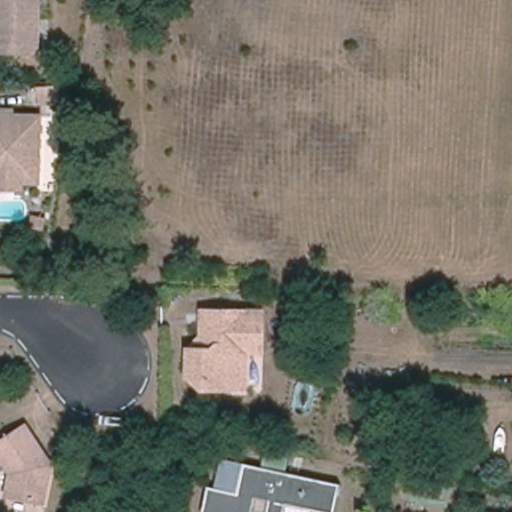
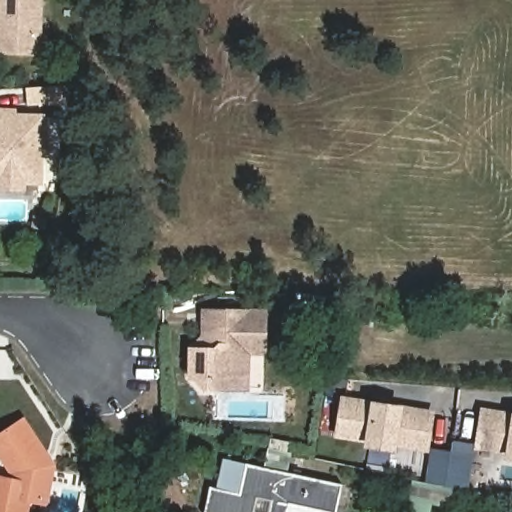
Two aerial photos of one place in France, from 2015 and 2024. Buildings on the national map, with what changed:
unchanged [(0,53),(0,0),(41,0),(39,54),(0,53)]
unchanged [(61,103),(42,104),(42,89),(60,87),(61,103)]
unchanged [(14,118),(42,119),(40,181),(0,181),(0,113),(14,113),(14,118)]
unchanged [(265,307),(265,349),(249,349),(230,360),(225,360),(224,385),(223,385),(206,385),(206,374),(190,373),(191,345),(210,345),(210,337),(204,328),(204,306),(265,307)]
new [(397,446),(396,451),(363,446),(364,441),(334,437),(340,395),(371,401),(405,405),(435,410),(430,451),(397,446)]
new [(504,460),(506,452),(474,449),(480,407),(512,412),(512,461),(504,460)]
unchanged [(37,448),(44,460),(53,461),(45,498),(16,498),(18,512),(0,512),(0,478),(12,468),(0,449),(0,442),(27,423),(39,440),(37,448)]
new [(430,451),(430,447),(451,451),(453,440),(475,443),(474,449),(468,490),(454,488),(424,482),(430,451)]
unchanged [(342,485),(337,512),(316,512),(288,506),(287,512),(205,512),(210,487),(239,493),(246,465),(342,485)]
new [(450,507),(432,504),(431,512),(416,512),(406,510),(412,480),(454,488),(450,507)]

